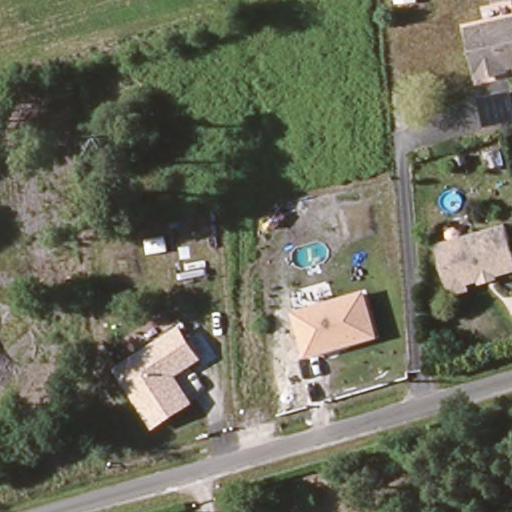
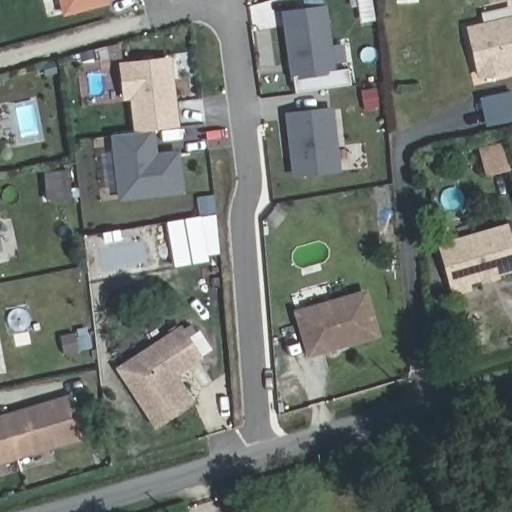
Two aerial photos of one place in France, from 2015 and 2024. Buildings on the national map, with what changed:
new [(108,4),(65,15),(61,0),(106,0),(108,4)]
new [(324,8),(333,72),(293,78),(284,14),(324,8)]
unchanged [(488,80),(478,32),(512,25),(512,74),(488,80)]
new [(170,84),(172,90),(176,129),(136,133),(132,98),(124,98),(121,66),(168,61),(170,84)]
new [(284,113),(333,108),(340,173),(292,178),(284,113)]
new [(118,201),(109,135),(136,133),(153,131),(156,153),(179,149),(183,193),(118,201)]
new [(46,202),(44,172),(68,170),(70,200),(46,202)]
new [(166,223),(214,214),(222,257),(174,267),(166,223)]
unchanged [(505,278),(491,282),(476,286),(478,293),(463,297),(449,250),(512,231),(512,276),(505,278)]
new [(0,246),(1,251),(0,251),(0,246)]
unchanged [(365,289),(380,337),(306,358),(294,311),(365,289)]
unchanged [(177,376),(194,403),(154,429),(115,368),(180,325),(203,359),(177,376)]
new [(0,415),(72,393),(86,440),(0,465),(0,415)]

